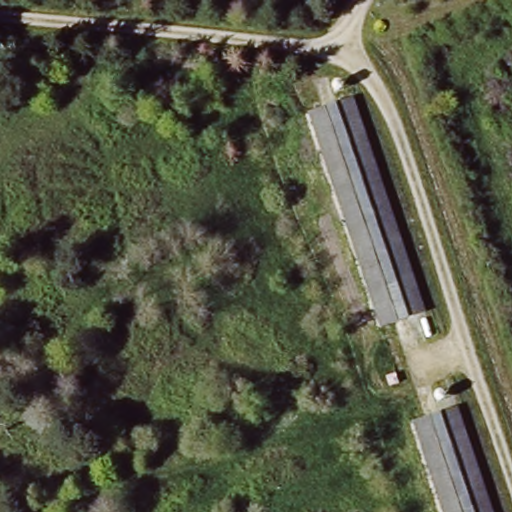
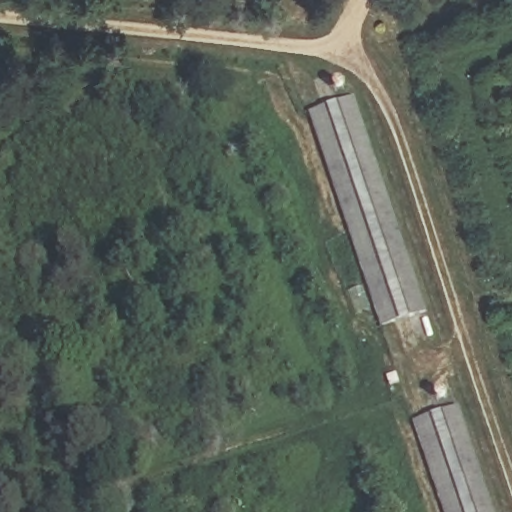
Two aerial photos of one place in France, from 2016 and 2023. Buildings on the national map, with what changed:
unchanged [(312,113),(357,98),(425,305),(380,320),(312,113)]
unchanged [(461,412),(494,512),(442,512),(415,427),(461,412)]

